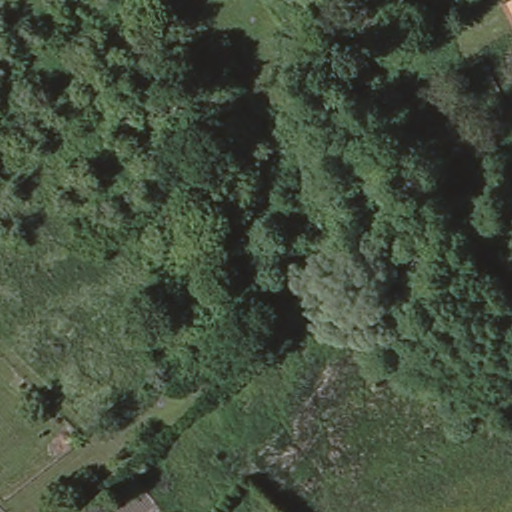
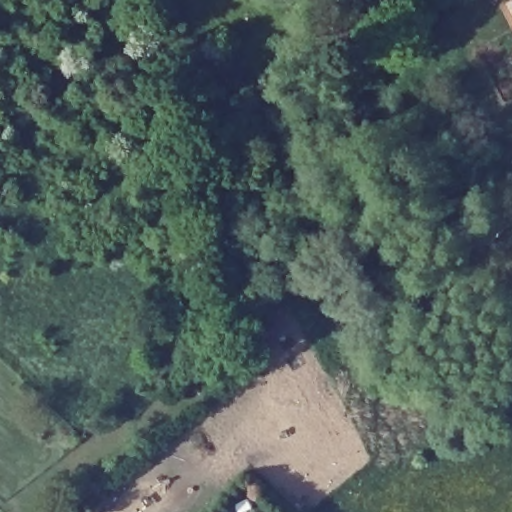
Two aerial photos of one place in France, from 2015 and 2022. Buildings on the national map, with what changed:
unchanged [(499,5),(509,0),(512,0),(512,25),(507,28),(499,5)]

